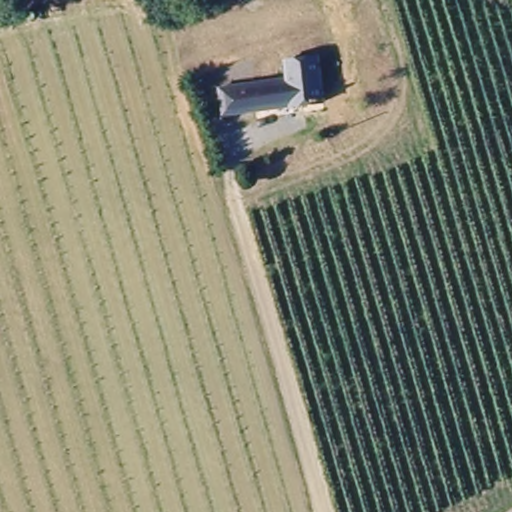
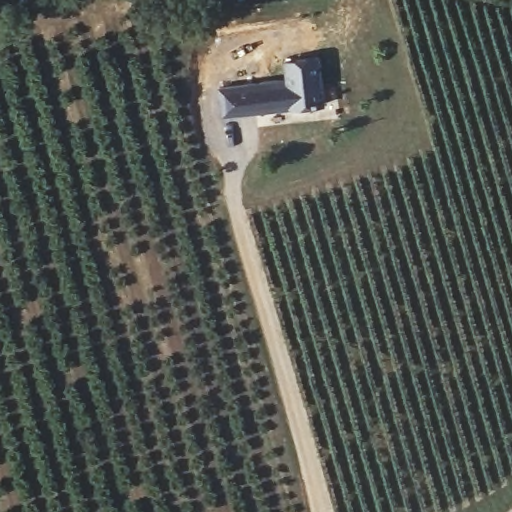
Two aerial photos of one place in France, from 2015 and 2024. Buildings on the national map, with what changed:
unchanged [(291,77),(289,56),(318,53),(323,101),(225,115),(220,84),(291,77)]

